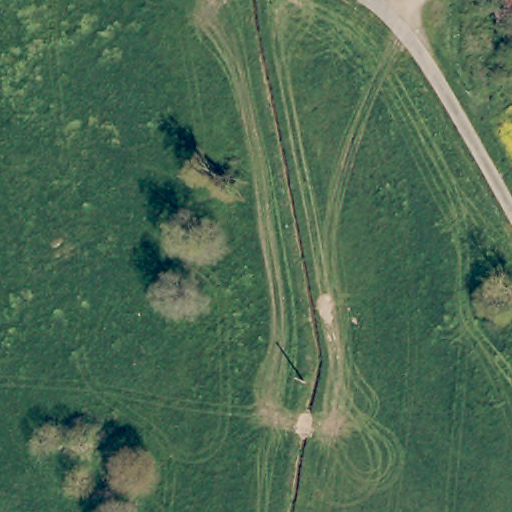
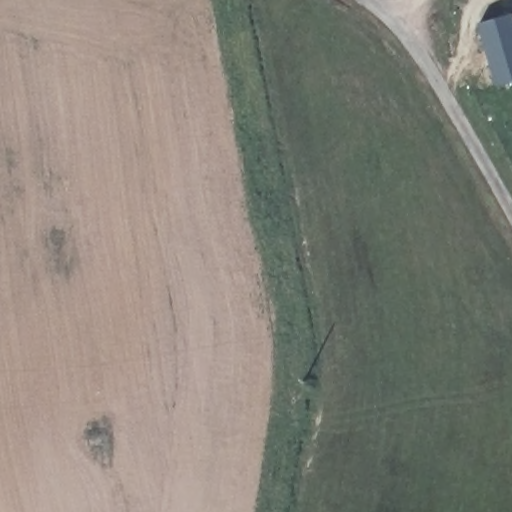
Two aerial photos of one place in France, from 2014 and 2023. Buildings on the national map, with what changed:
unchanged [(501,0),(512,0),(512,32),(509,32),(501,0)]
new [(478,24),(505,15),(509,32),(512,32),(512,84),(497,90),(478,24)]

